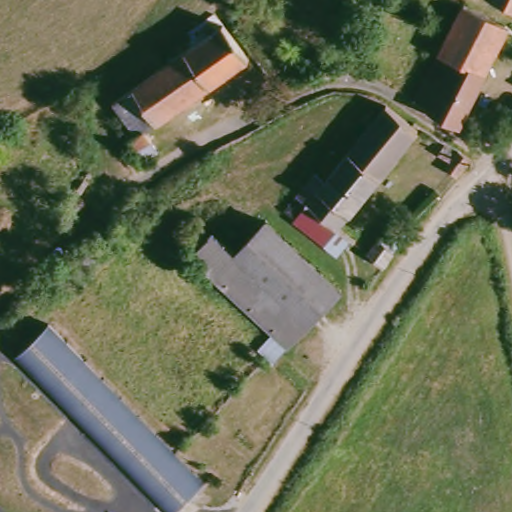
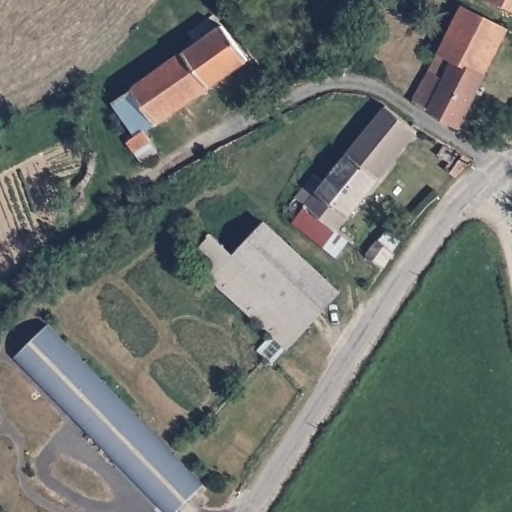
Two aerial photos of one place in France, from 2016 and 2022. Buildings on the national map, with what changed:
unchanged [(512,10),(492,0),(512,0),(512,10)]
unchanged [(511,26),(461,126),(420,99),(465,10),(478,14),(511,26)]
unchanged [(127,142),(137,134),(113,101),(225,23),(249,57),(149,130),(156,140),(136,155),(127,142)]
unchanged [(512,96),(512,114),(503,104),(512,96)]
unchanged [(417,135),(338,231),(309,207),(299,200),(317,177),(327,185),(387,111),(417,135)]
unchanged [(467,155),(451,175),(436,162),(440,157),(433,152),(445,136),(467,155)]
unchanged [(338,231),(355,244),(342,260),(297,223),(309,207),(338,231)]
unchanged [(237,254),(267,222),(342,294),(312,326),(237,254)]
unchanged [(382,261),(367,250),(380,233),(394,244),(382,261)]
unchanged [(272,342),(279,334),(198,256),(217,236),(237,254),(312,326),(285,356),(272,342)]
unchanged [(210,490),(186,512),(163,512),(19,362),(54,329),(182,461),(210,490)]

